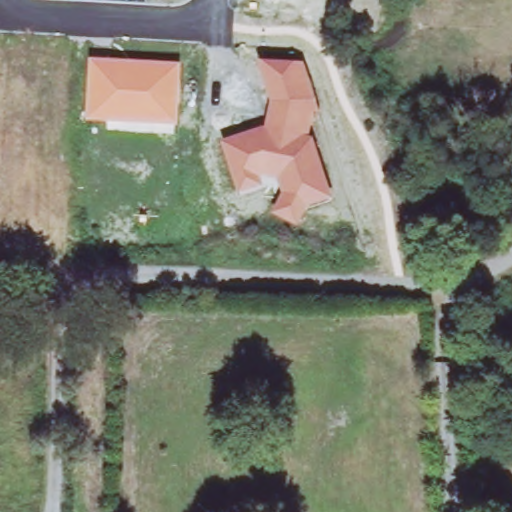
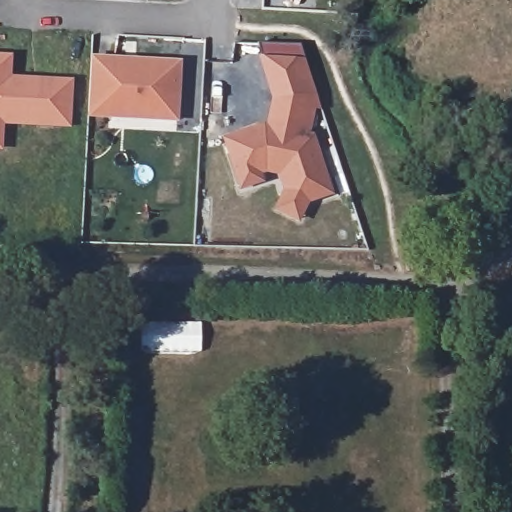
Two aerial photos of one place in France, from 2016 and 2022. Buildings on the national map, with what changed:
unchanged [(182,62),(179,125),(87,119),(89,55),(182,62)]
new [(8,79),(73,83),(71,127),(1,123),(0,136),(0,57),(9,58),(8,79)]
unchanged [(302,60),(318,98),(320,116),(310,134),(315,136),(331,194),(311,201),(297,225),(270,211),(283,190),(280,177),(262,173),(266,184),(238,193),(222,139),(264,125),(272,99),(259,60),(302,60)]

